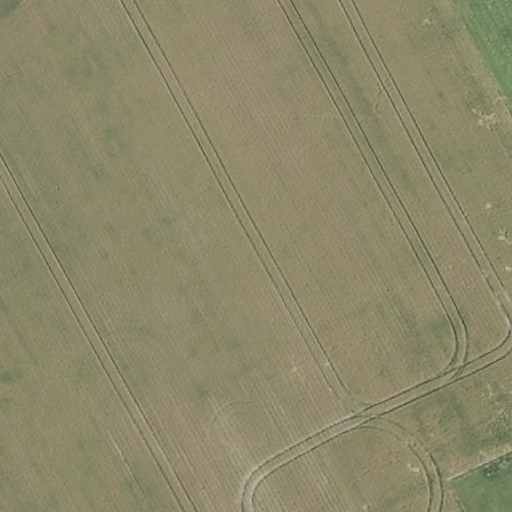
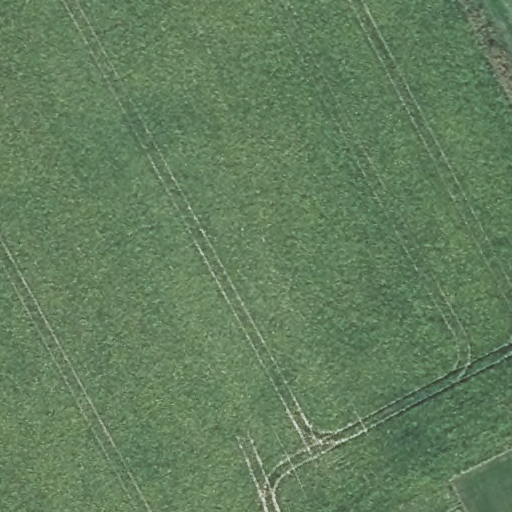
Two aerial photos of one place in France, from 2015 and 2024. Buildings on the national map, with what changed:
[]

